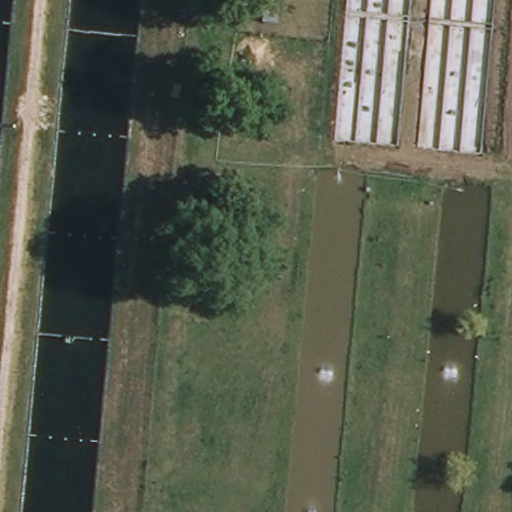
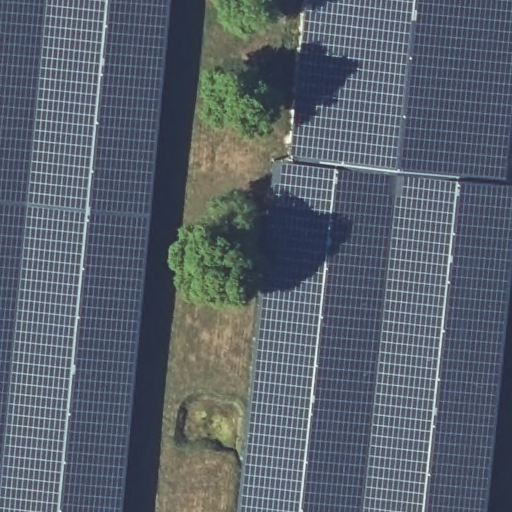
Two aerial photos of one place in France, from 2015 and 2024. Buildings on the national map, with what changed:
new [(0,0),(169,0),(121,512),(0,512),(0,0)]
new [(512,184),(512,259),(487,512),(238,512),(275,159),(292,161),(307,0),(512,0),(512,103),(503,182),(512,184)]

